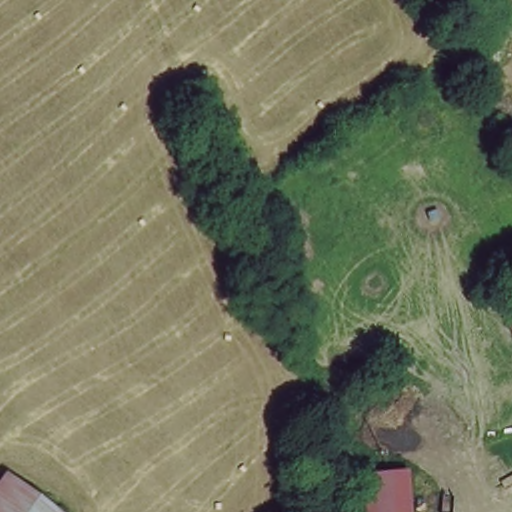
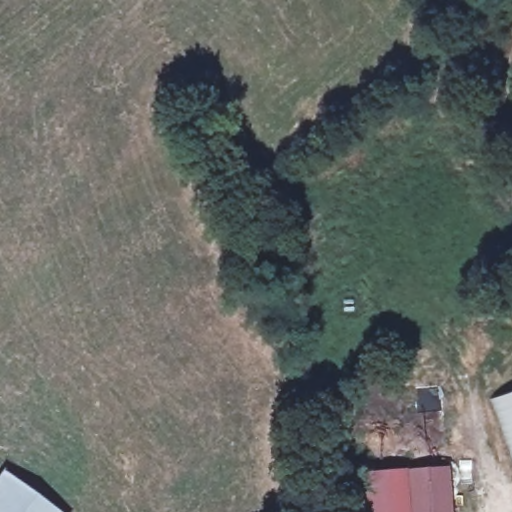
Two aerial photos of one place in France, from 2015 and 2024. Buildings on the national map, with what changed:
new [(512,393),(512,455),(493,400),(512,393)]
unchanged [(356,512),(354,470),(406,466),(409,512),(356,512)]
new [(452,512),(409,512),(407,471),(449,468),(452,512)]
unchanged [(49,512),(0,512),(0,491),(13,478),(49,512)]

